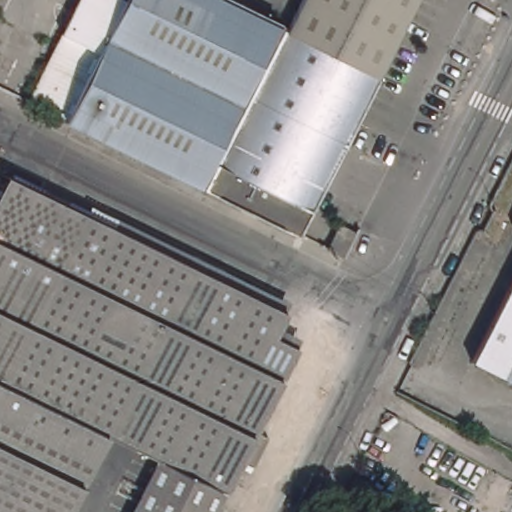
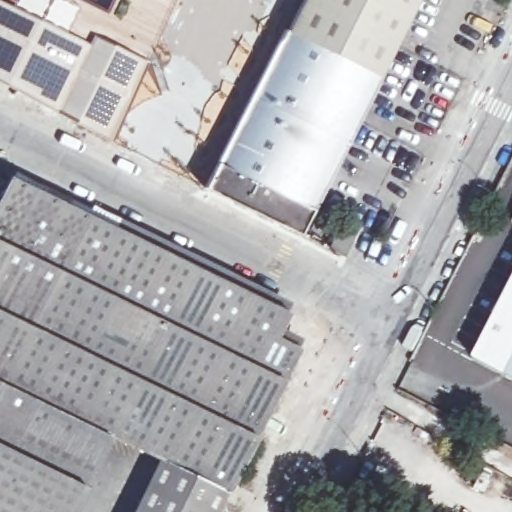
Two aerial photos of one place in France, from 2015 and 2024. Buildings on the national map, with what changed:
new [(149,63),(110,143),(0,89),(0,0),(81,0),(109,14),(116,0),(175,0),(149,63)]
demolished [(80,0),(232,0),(254,11),(284,25),(283,28),(205,188),(68,120),(28,101),(80,0)]
unchanged [(283,28),(288,31),(297,13),(304,0),(418,0),(409,18),(395,46),(393,50),(380,76),(380,77),(369,97),(368,98),(302,231),(300,234),(297,233),(296,232),(263,216),(242,206),(208,189),(205,188),(283,28)]
unchanged [(287,311),(275,335),(298,347),(227,493),(225,493),(216,512),(133,512),(161,457),(114,434),(74,512),(0,512),(0,201),(12,176),(287,311)]
unchanged [(512,247),(512,398),(451,367),(512,247)]

